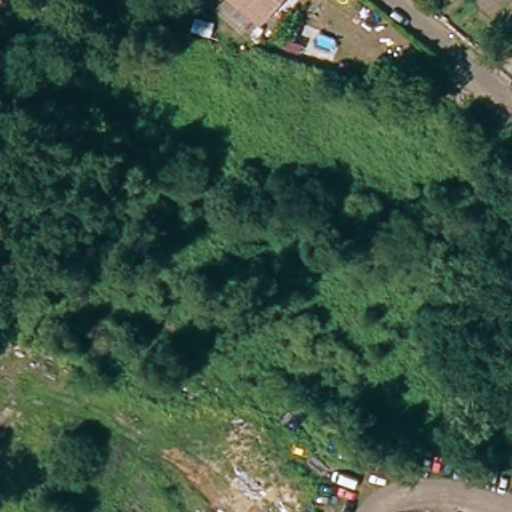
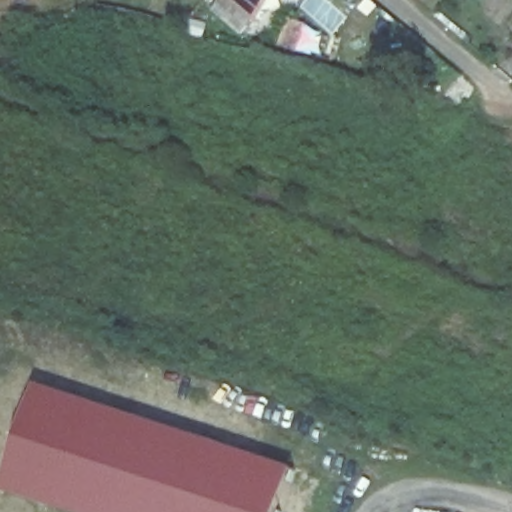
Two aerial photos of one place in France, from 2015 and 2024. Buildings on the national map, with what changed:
unchanged [(238,0),(273,0),(258,16),(238,0)]
new [(21,436),(39,384),(293,467),(280,512),(64,512),(5,492),(21,436)]

